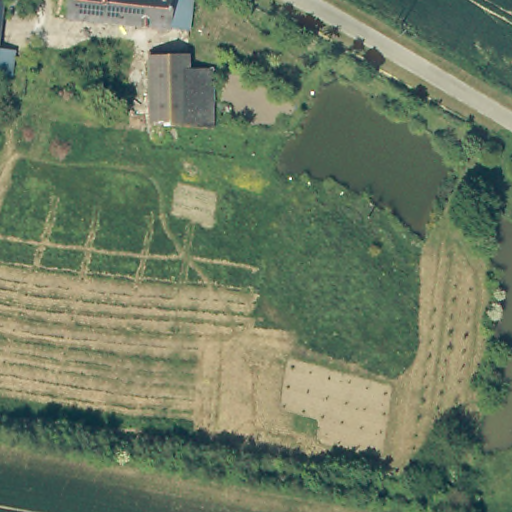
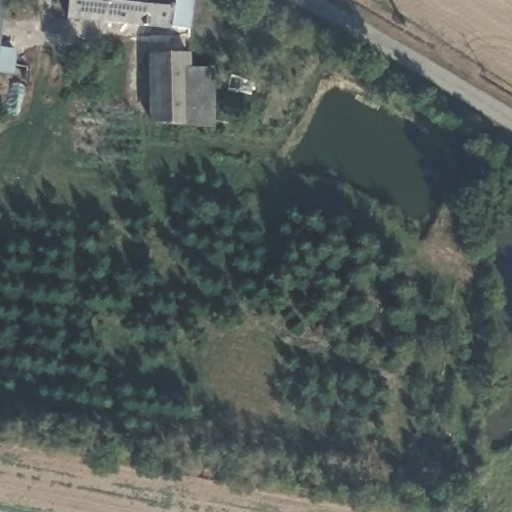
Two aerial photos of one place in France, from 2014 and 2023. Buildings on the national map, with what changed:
unchanged [(7,0),(0,45),(16,48),(12,74),(0,71),(0,0),(7,0)]
unchanged [(65,18),(67,0),(191,0),(188,29),(65,18)]
unchanged [(196,129),(156,126),(159,44),(196,45),(196,70),(221,71),(220,130),(196,129)]

